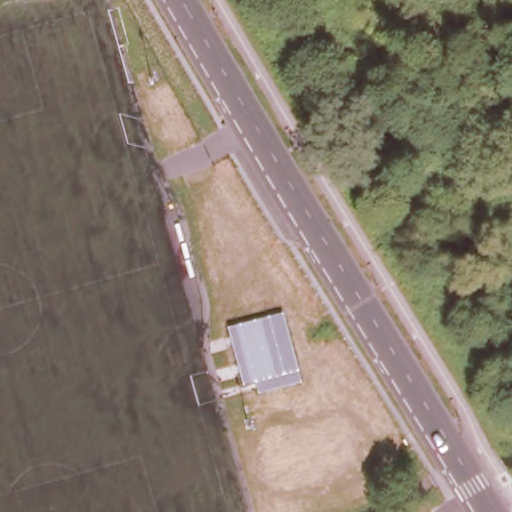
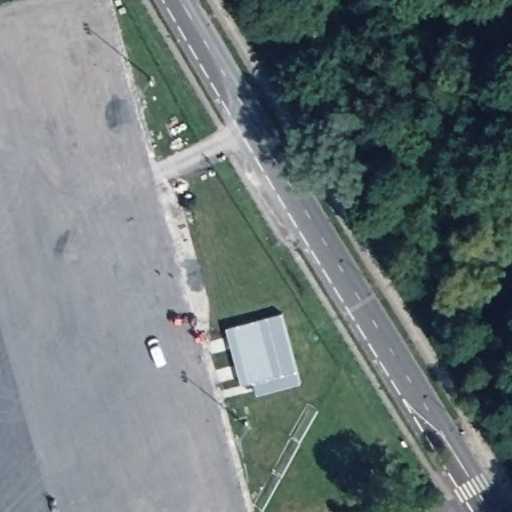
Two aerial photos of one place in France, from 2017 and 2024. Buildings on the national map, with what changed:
unchanged [(284,313),(301,382),(258,393),(254,380),(242,385),(228,327),(284,313)]
unchanged [(507,331),(506,315),(512,315),(512,373),(509,373),(507,338),(507,331)]

